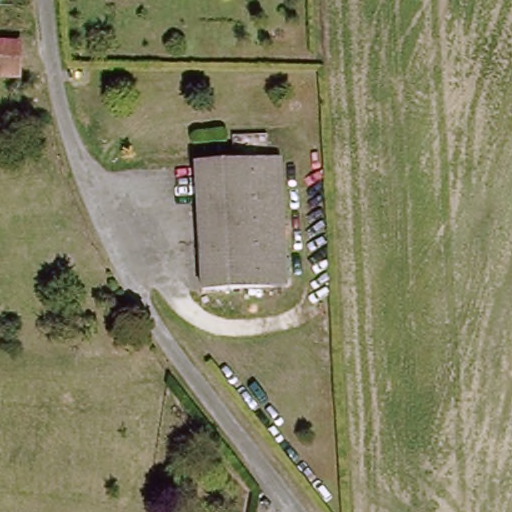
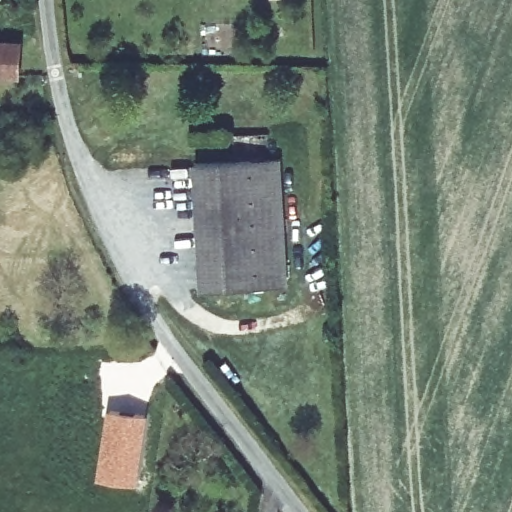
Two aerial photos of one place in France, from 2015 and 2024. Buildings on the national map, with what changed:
unchanged [(0,41),(21,42),(18,75),(0,74),(0,41)]
unchanged [(194,163),(280,159),(288,286),(202,290),(194,163)]
new [(107,407),(148,414),(137,484),(96,478),(107,407)]

